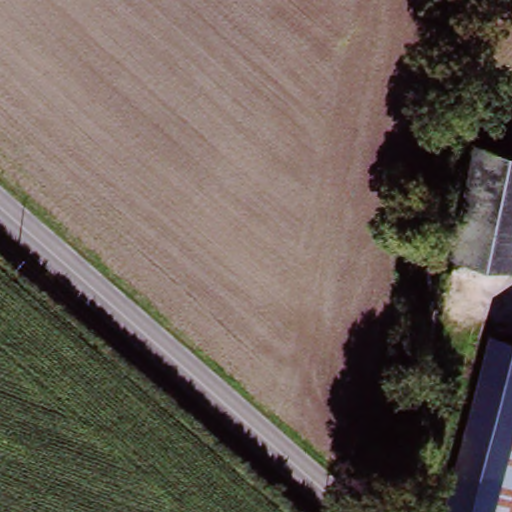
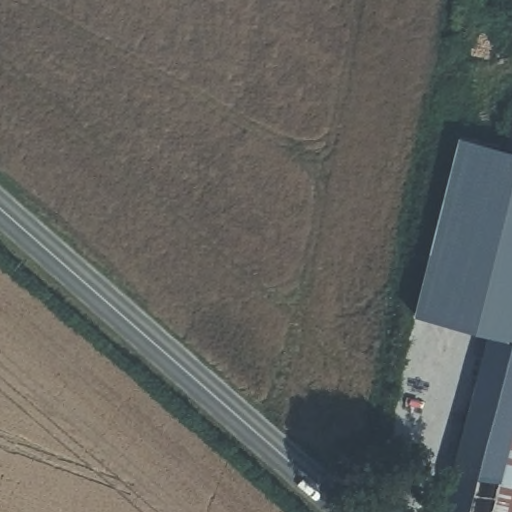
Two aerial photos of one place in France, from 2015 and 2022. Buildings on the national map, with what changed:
new [(413,313),(458,135),(511,147),(512,140),(512,348),(490,342),(492,331),(413,313)]
demolished [(512,272),(453,259),(475,149),(508,156),(512,140),(512,272)]
unchanged [(512,348),(512,428),(487,512),(438,512),(472,399),(488,347),(490,342),(512,348)]
unchanged [(512,428),(512,504),(510,512),(487,512),(512,428)]

